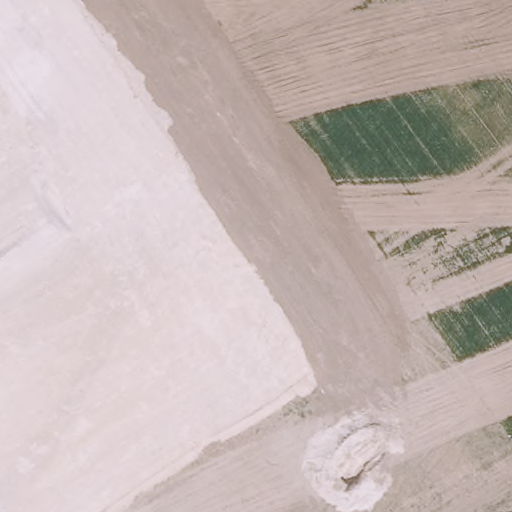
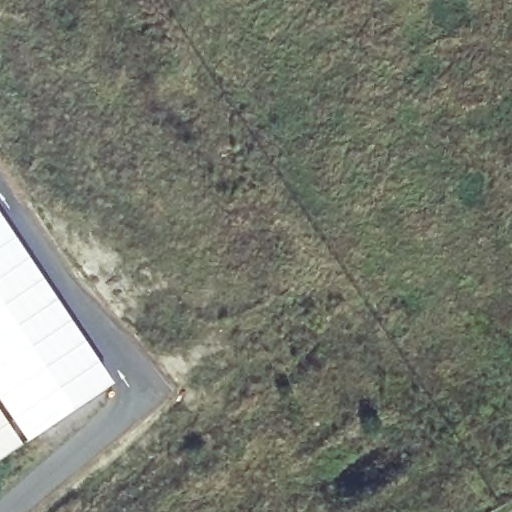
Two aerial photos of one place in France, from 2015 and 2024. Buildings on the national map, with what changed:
new [(112,384),(24,445),(0,409),(0,218),(112,384)]
new [(17,443),(0,455),(0,418),(17,443)]

